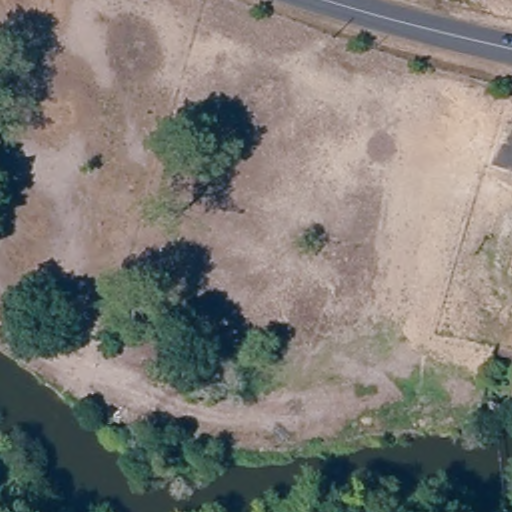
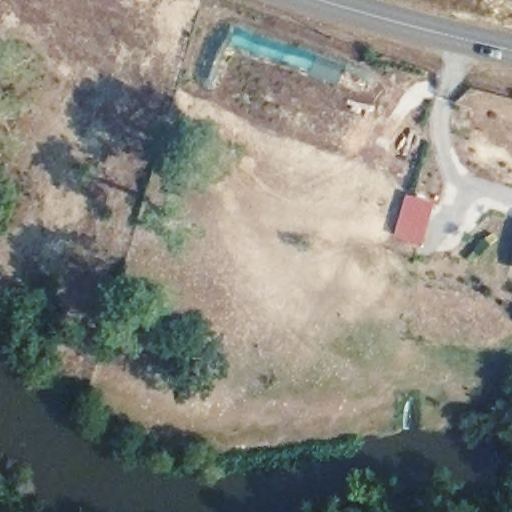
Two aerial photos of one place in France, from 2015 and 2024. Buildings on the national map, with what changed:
new [(396,237),(407,195),(436,203),(424,246),(396,237)]

